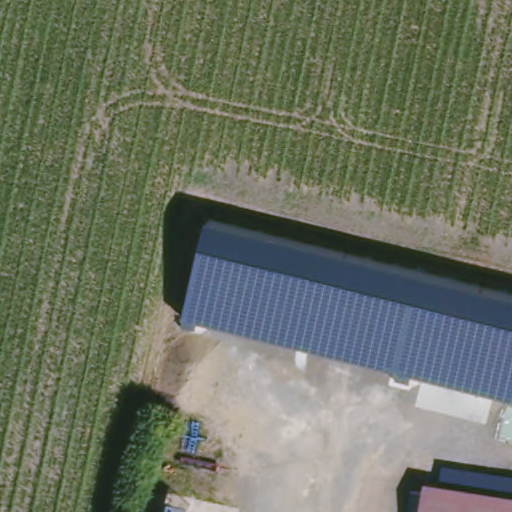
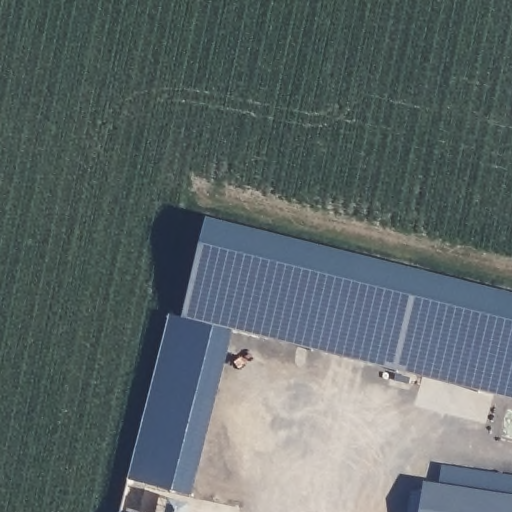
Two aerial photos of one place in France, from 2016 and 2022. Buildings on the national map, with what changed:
unchanged [(208,220),(512,294),(512,399),(184,315),(208,220)]
new [(236,328),(196,497),(128,480),(169,314),(184,315),(236,328)]
unchanged [(418,484),(512,498),(512,512),(414,512),(418,484)]
unchanged [(186,502),(184,512),(165,512),(167,499),(186,502)]

